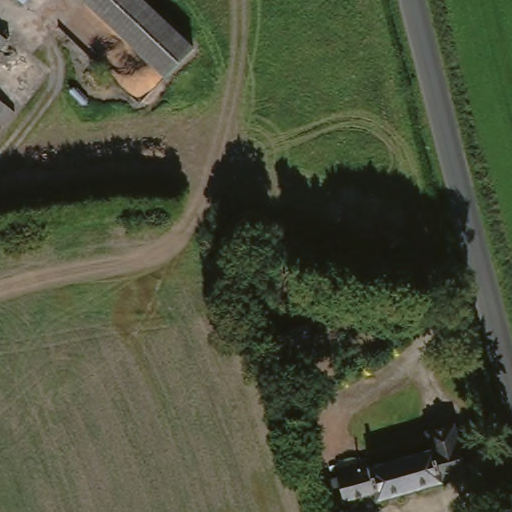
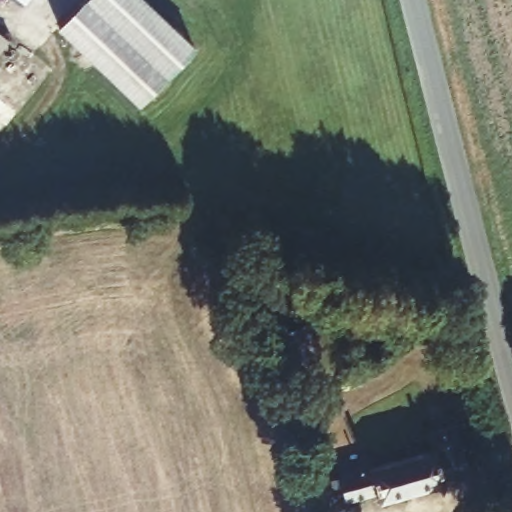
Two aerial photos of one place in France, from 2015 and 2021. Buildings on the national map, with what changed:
unchanged [(15,0),(28,0),(23,6),(15,0)]
new [(195,47),(139,107),(58,29),(85,0),(146,0),(195,47)]
unchanged [(0,51),(0,32),(9,40),(0,51)]
unchanged [(0,96),(0,92),(1,93),(0,96)]
unchanged [(10,122),(0,116),(0,117),(0,97),(17,111),(10,122)]
unchanged [(468,472),(439,479),(440,483),(378,498),(375,490),(345,496),(343,484),(335,485),(333,475),(340,473),(337,461),(345,460),(364,456),(366,465),(385,461),(431,451),(426,431),(456,424),(468,472)]

